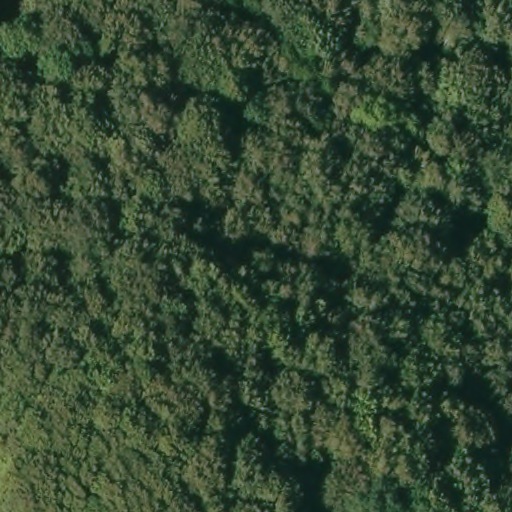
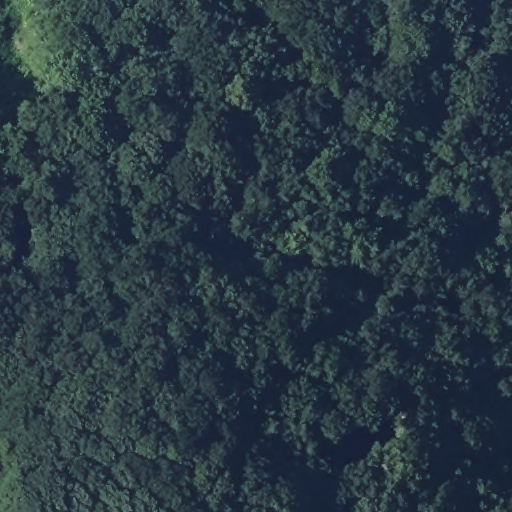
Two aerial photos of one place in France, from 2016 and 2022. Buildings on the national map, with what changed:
unchanged [(27,42),(29,53),(17,56),(15,45),(27,42)]

